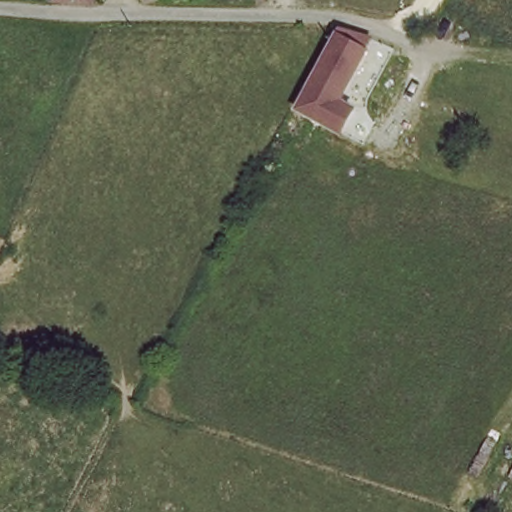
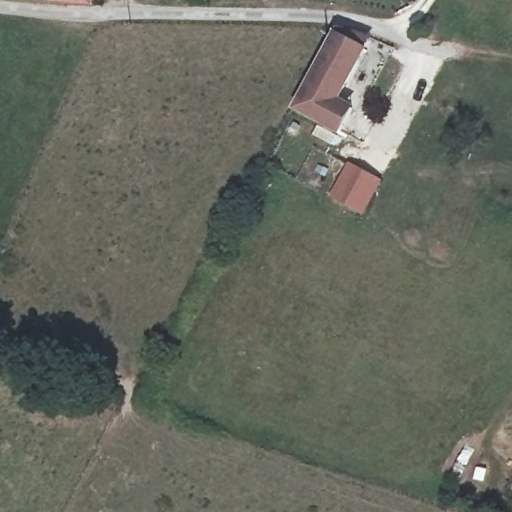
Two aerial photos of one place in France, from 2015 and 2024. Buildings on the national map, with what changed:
unchanged [(97,0),(97,2),(58,1),(58,0),(97,0)]
unchanged [(296,115),(334,36),(365,43),(331,106),(371,133),(359,153),(296,115)]
new [(348,161),(383,180),(363,216),(329,197),(348,161)]

